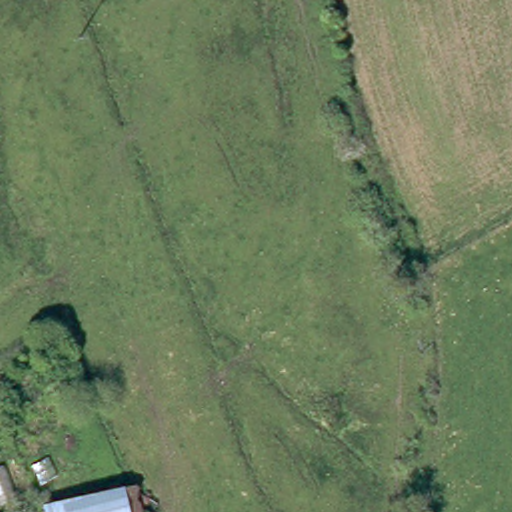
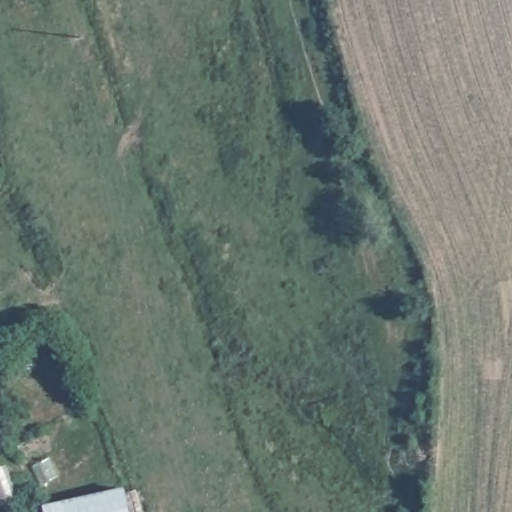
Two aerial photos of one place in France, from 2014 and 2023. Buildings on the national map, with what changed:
unchanged [(41,512),(118,494),(123,512),(42,512),(41,512)]

